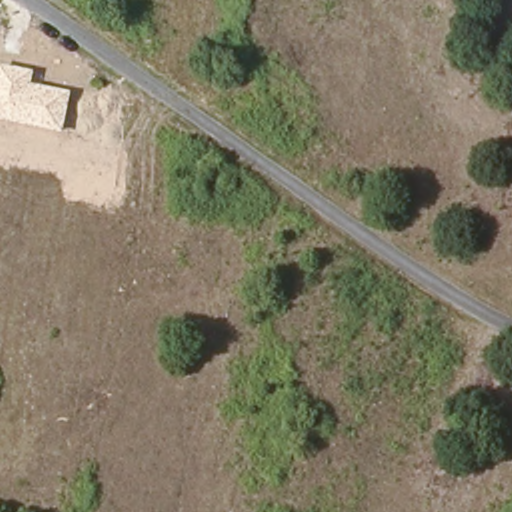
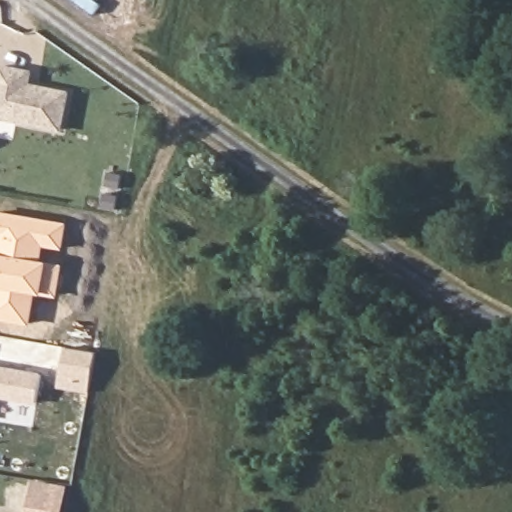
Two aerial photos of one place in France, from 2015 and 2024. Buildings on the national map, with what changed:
unchanged [(62,132),(0,120),(0,65),(35,71),(32,84),(70,91),(62,132)]
new [(0,320),(0,211),(69,223),(64,250),(44,247),(42,260),(48,261),(64,264),(59,298),(43,295),(37,294),(32,325),(0,320)]
new [(58,389),(64,347),(96,352),(89,393),(58,389)]
new [(43,373),(37,406),(0,399),(0,365),(43,373)]
new [(70,486),(67,512),(32,512),(35,480),(70,486)]

